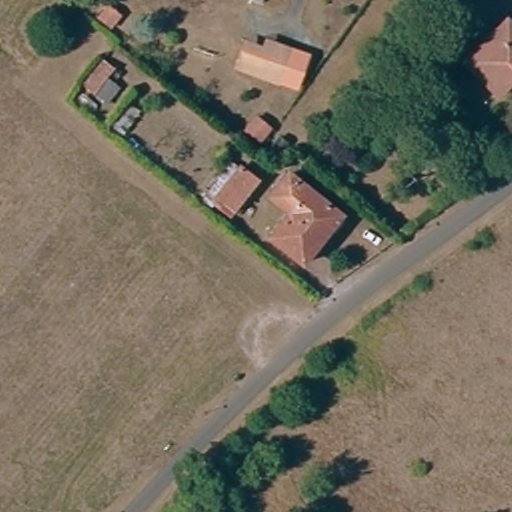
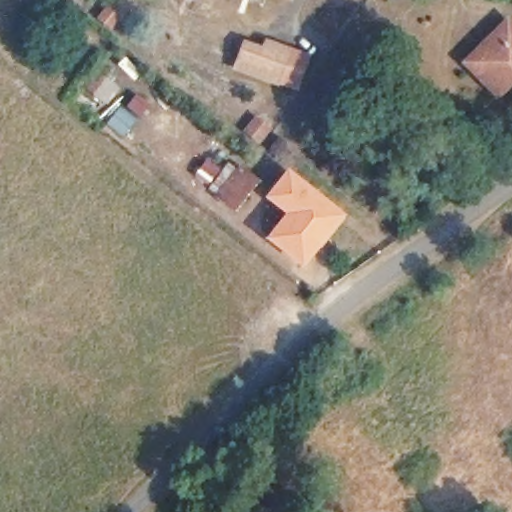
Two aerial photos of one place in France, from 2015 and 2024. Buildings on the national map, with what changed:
unchanged [(282,0),(286,0),(286,1),(282,0)]
unchanged [(509,25),(512,28),(512,70),(485,48),(509,25)]
unchanged [(263,50),(268,39),(312,56),(301,94),(236,70),(247,42),(263,50)]
unchanged [(468,65),(485,48),(512,70),(512,86),(501,99),(468,65)]
unchanged [(104,82),(87,104),(79,96),(95,75),(104,82)]
unchanged [(197,200),(229,162),(259,184),(226,225),(197,200)]
unchanged [(341,218),(306,263),(275,240),(296,210),(280,195),(291,181),(341,218)]

